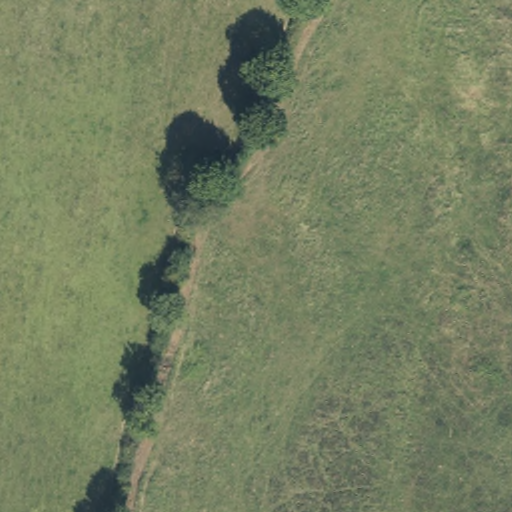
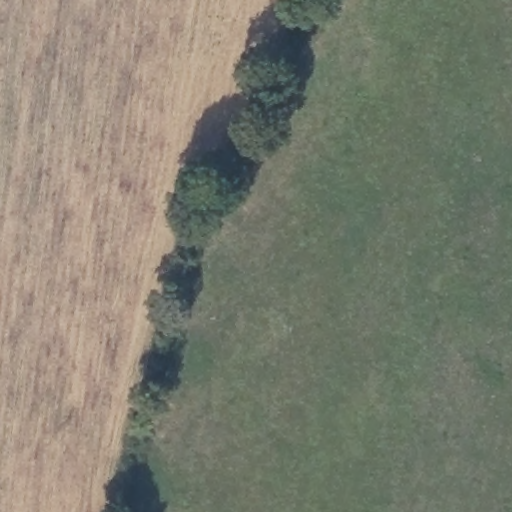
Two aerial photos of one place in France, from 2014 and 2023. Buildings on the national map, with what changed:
[]

